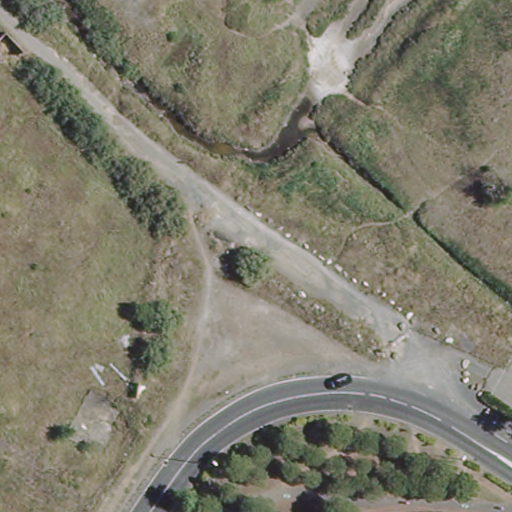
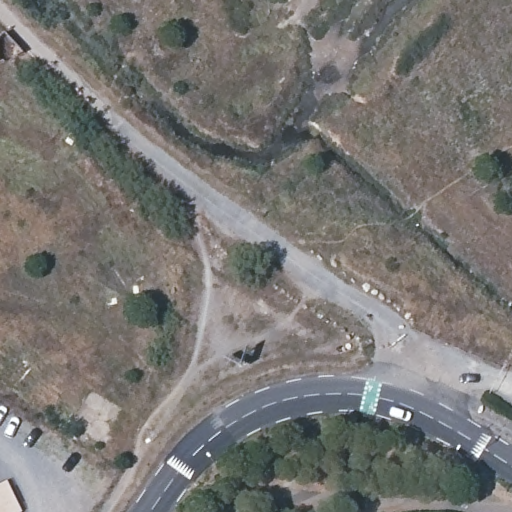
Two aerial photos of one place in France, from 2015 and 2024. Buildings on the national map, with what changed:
unchanged [(0,40),(7,34),(26,54),(0,64),(0,40)]
new [(22,511),(21,512),(0,512),(0,483),(7,479),(22,511)]

